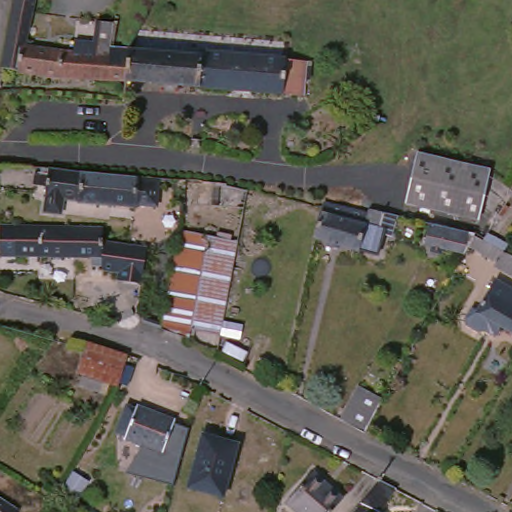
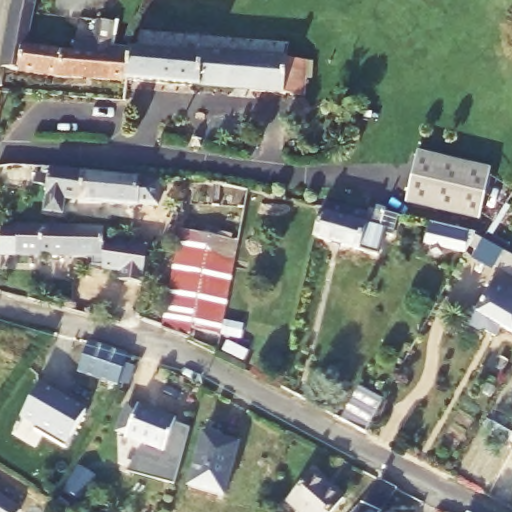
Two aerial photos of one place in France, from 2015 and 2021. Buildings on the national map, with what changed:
unchanged [(12,69),(0,67),(0,45),(9,0),(32,0),(23,44),(69,50),(71,40),(90,42),(93,19),(111,21),(108,47),(110,47),(124,49),(121,77),(121,80),(59,76),(12,69)]
unchanged [(196,55),(196,52),(281,58),(280,67),(302,69),(300,95),(123,81),(121,80),(121,77),(124,49),(196,55)]
unchanged [(479,220),(406,203),(418,154),(491,171),(479,220)]
unchanged [(155,208),(136,206),(63,200),(61,214),(44,212),(46,195),(38,194),(41,169),(138,178),(158,179),(155,208)]
unchanged [(382,230),(384,230),(382,236),(374,234),(368,254),(306,237),(313,208),(315,203),(358,214),(360,210),(373,213),(386,216),(382,230)]
unchanged [(495,261),(496,257),(469,241),(464,249),(444,244),(443,251),(430,247),(432,242),(425,240),(431,219),(465,227),(476,229),(475,230),(512,251),(512,271),(495,261)]
unchanged [(103,258),(75,258),(75,262),(65,262),(64,257),(0,256),(0,240),(0,225),(104,228),(104,241),(133,245),(148,247),(148,248),(145,271),(103,265),(103,258)]
unchanged [(192,330),(190,338),(163,329),(181,231),(211,237),(194,331),(192,330)]
unchanged [(211,237),(237,242),(219,335),(194,331),(211,237)]
unchanged [(478,311),(496,280),(512,289),(512,332),(478,311)]
unchanged [(128,354),(118,385),(105,381),(102,390),(80,384),(83,373),(78,372),(88,342),(128,354)]
new [(39,383),(86,410),(67,447),(33,430),(36,426),(21,417),(39,383)]
unchanged [(358,386),(383,399),(365,432),(340,419),(358,386)]
unchanged [(176,419),(175,422),(188,427),(185,440),(173,484),(136,471),(145,446),(126,439),(128,436),(119,433),(128,406),(137,409),(138,406),(176,419)]
unchanged [(188,487),(203,433),(239,443),(224,496),(188,487)]
unchanged [(304,472),(334,499),(322,512),(290,512),(278,501),(304,472)]
unchanged [(396,488),(382,512),(353,512),(380,479),(396,488)]
unchanged [(0,512),(0,498),(18,509),(17,512),(0,512)]

